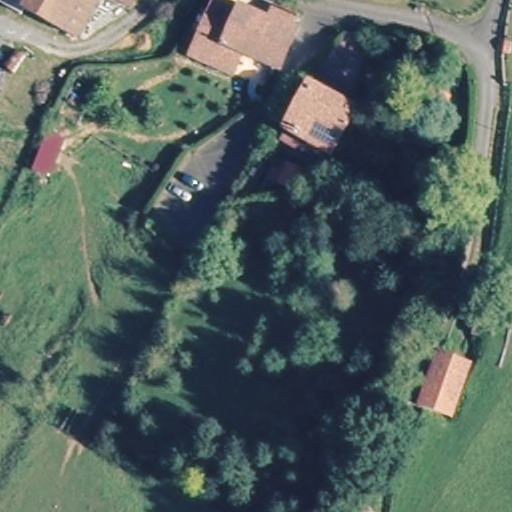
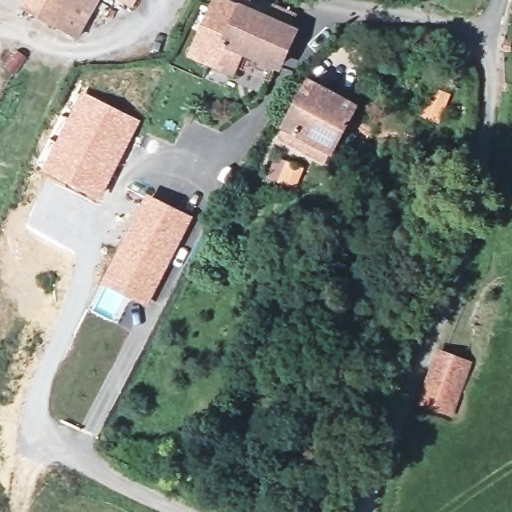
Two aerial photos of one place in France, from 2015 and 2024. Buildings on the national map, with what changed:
unchanged [(87,35),(28,7),(32,0),(104,0),(87,35)]
unchanged [(141,2),(138,0),(142,0),(141,2)]
unchanged [(289,21),(297,24),(282,61),(245,48),(204,33),(215,0),(234,0),(268,12),(273,0),(274,0),(293,9),(289,21)]
unchanged [(245,48),(237,70),(196,55),(204,33),(245,48)]
unchanged [(278,132),(283,122),(308,78),(351,105),(346,115),(372,129),(366,141),(339,126),(327,147),(322,157),(278,132)]
unchanged [(460,94),(447,120),(431,111),(444,85),(460,94)]
new [(63,126),(84,91),(142,120),(102,201),(43,170),(63,126)]
unchanged [(463,154),(450,178),(434,169),(447,145),(463,154)]
unchanged [(286,151),(307,164),(297,183),(275,171),(286,151)]
new [(135,217),(149,193),(195,216),(150,305),(102,281),(135,217)]
unchanged [(471,362),(450,413),(414,400),(433,349),(465,360),(471,362)]

